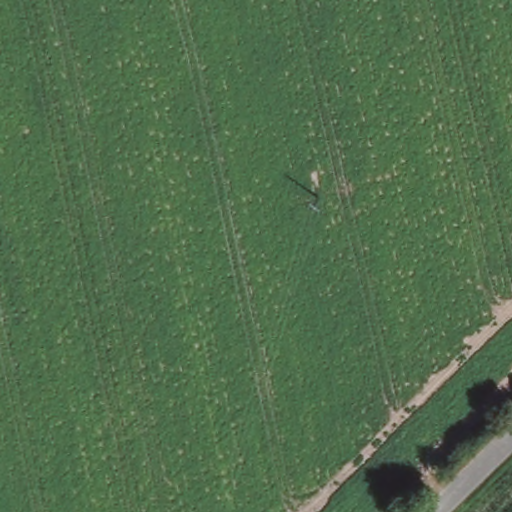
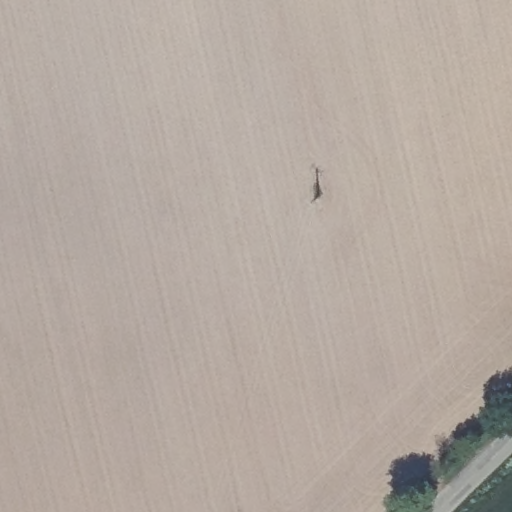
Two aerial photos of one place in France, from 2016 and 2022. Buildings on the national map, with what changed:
unchanged [(381,512),(386,507),(390,512),(381,512)]

